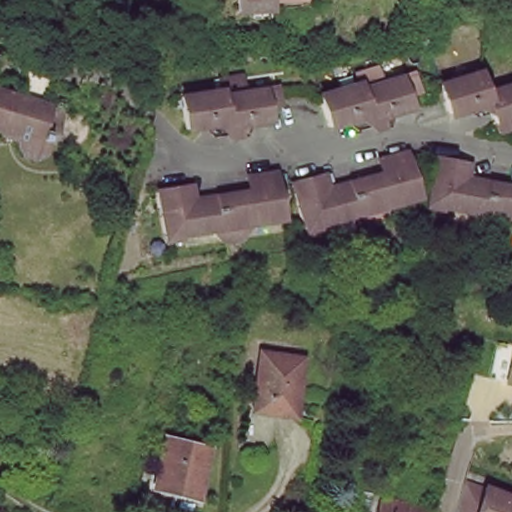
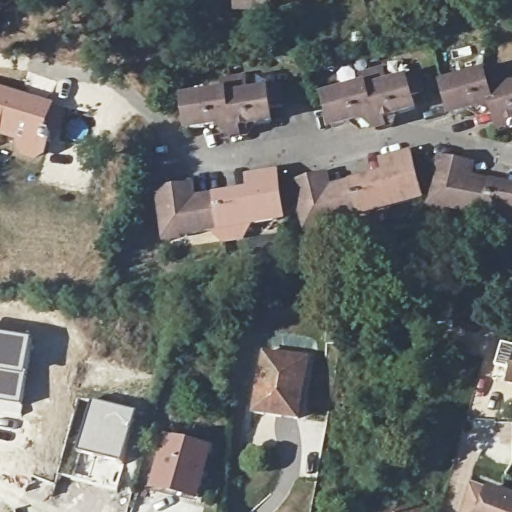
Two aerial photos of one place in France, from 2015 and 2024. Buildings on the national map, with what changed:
unchanged [(270,0),(270,10),(239,12),(238,0),(286,0),(270,0)]
unchanged [(353,88),(350,79),(372,72),(376,86),(407,78),(412,95),(399,100),(404,115),(364,126),(362,120),(322,131),(314,99),(353,88)]
unchanged [(512,86),(512,119),(497,123),(492,105),(452,115),(442,85),(484,72),(490,91),(512,86)]
unchanged [(223,124),(182,130),(177,95),(218,90),(216,80),(239,76),(241,92),(274,87),(276,105),(263,106),(265,122),(223,129),(223,124)]
unchanged [(12,95),(49,98),(48,101),(59,106),(56,123),(45,121),(41,147),(30,154),(17,150),(15,141),(16,136),(0,131),(0,87),(9,90),(12,95)]
unchanged [(306,225),(298,195),(295,195),(292,180),(320,172),(324,187),(385,170),(382,155),(409,147),(417,176),(412,177),(417,195),(380,205),(384,217),(365,222),(362,210),(306,225)]
unchanged [(502,228),(481,224),(485,211),(429,200),(436,169),(432,169),(436,153),(465,160),(462,174),(512,184),(512,217),(505,215),(502,228)]
unchanged [(165,232),(161,203),(158,204),(155,188),(185,183),(188,197),(251,188),(248,172),(276,169),(281,198),(275,199),(277,216),(242,221),(244,235),(223,239),(221,224),(165,232)]
new [(32,338),(21,409),(0,406),(0,333),(32,338)]
unchanged [(510,345),(512,346),(512,385),(502,382),(506,364),(510,345)]
unchanged [(281,415),(256,411),(266,352),(307,359),(298,412),(298,417),(281,415)]
new [(90,399),(137,410),(124,465),(76,453),(90,399)]
unchanged [(198,497),(155,486),(168,440),(210,450),(198,497)]
new [(76,453),(124,465),(117,491),(69,476),(76,453)]
unchanged [(496,495),(497,491),(512,497),(512,512),(468,512),(475,486),(496,495)]
unchanged [(439,507),(438,512),(381,512),(386,493),(439,507)]

